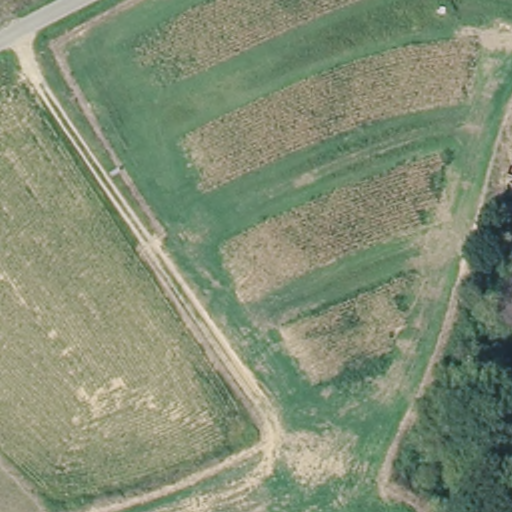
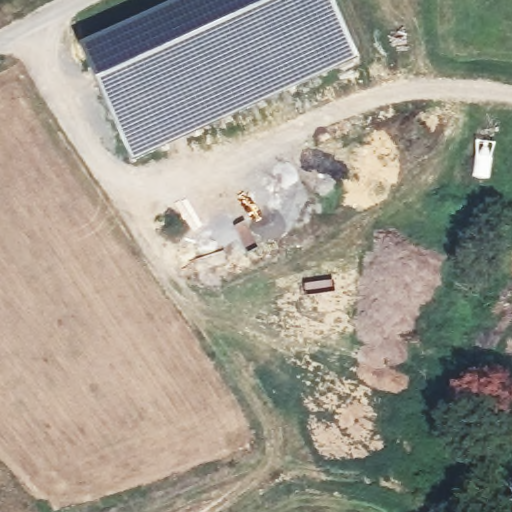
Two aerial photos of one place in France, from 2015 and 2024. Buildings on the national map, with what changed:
new [(177,0),(330,0),(356,61),(297,85),(130,163),(78,45),(177,0)]

